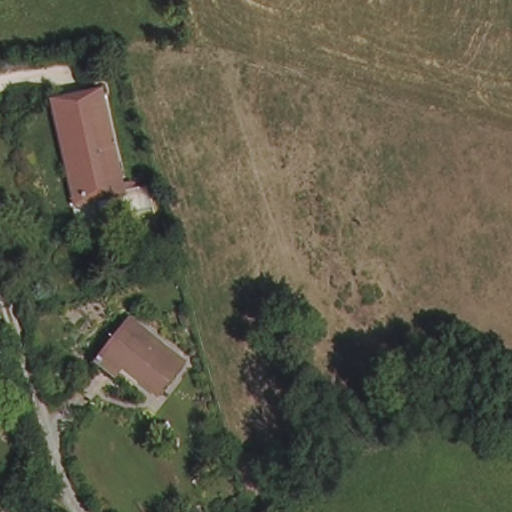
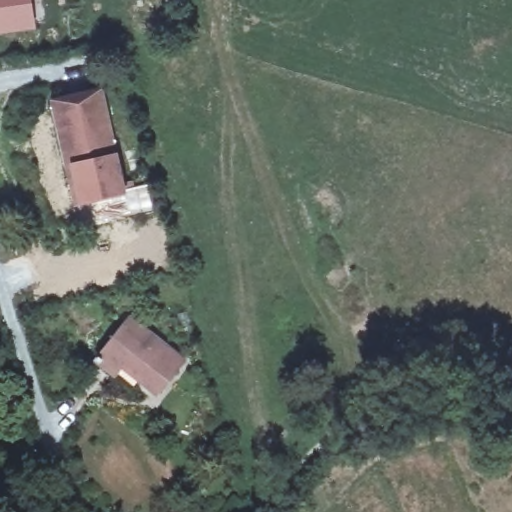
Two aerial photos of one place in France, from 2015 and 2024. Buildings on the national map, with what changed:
new [(0,34),(0,0),(33,0),(37,30),(0,34)]
unchanged [(97,196),(85,199),(75,157),(68,159),(56,103),(102,92),(122,184),(127,183),(129,189),(97,196)]
unchanged [(129,189),(148,185),(154,210),(103,221),(97,196),(129,189)]
unchanged [(183,360),(157,392),(122,365),(115,372),(97,358),(130,316),(183,360)]

